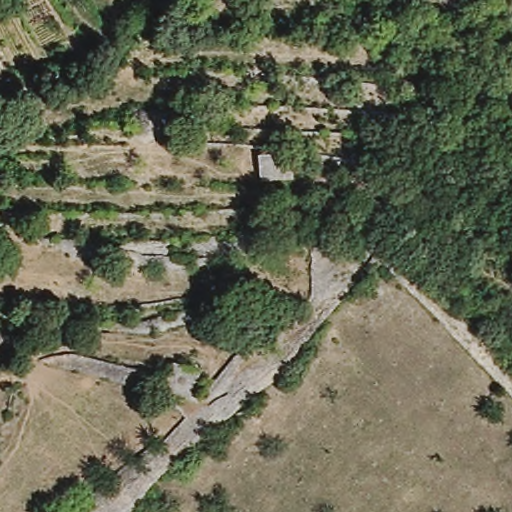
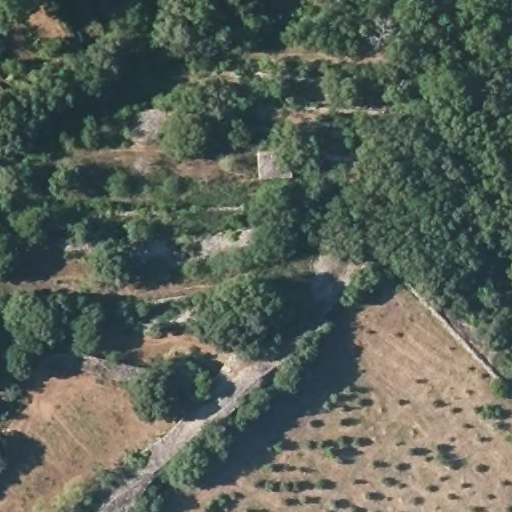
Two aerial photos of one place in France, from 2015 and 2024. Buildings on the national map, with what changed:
unchanged [(296,173),(254,175),(250,149),(290,148),(296,173)]
unchanged [(195,365),(185,392),(160,382),(170,356),(195,365)]

